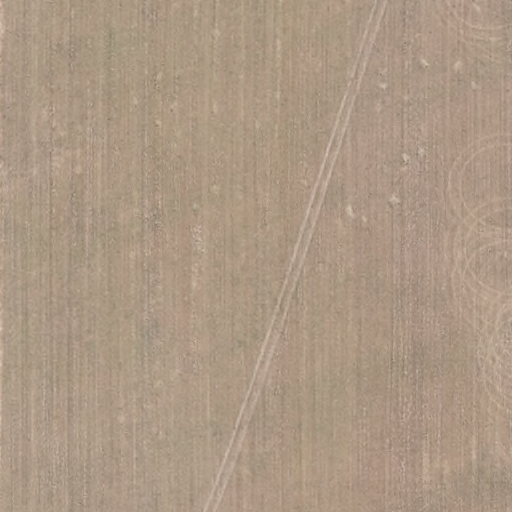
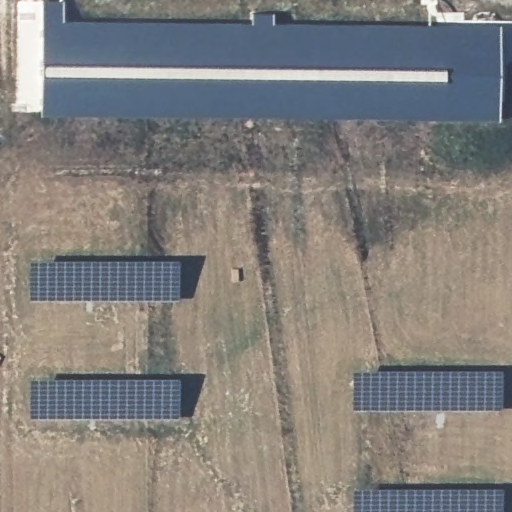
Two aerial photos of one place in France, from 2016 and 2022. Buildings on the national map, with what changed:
new [(41,0),(62,0),(63,19),(251,21),(251,12),(274,12),(273,21),(498,23),(498,117),(41,113),(41,0)]

